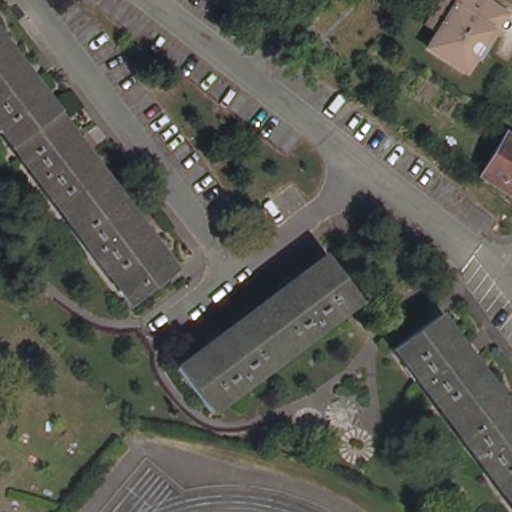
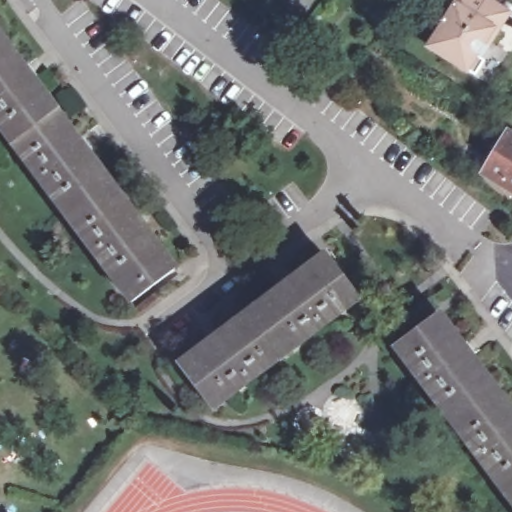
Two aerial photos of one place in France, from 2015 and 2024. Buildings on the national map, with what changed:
unchanged [(426,47),(437,30),(426,22),(431,15),(441,0),(487,0),(497,7),(508,14),(496,32),(479,58),(475,55),(464,71),(458,66),(426,47)]
unchanged [(133,303),(0,125),(0,35),(176,271),(133,303)]
unchanged [(512,132),(512,190),(486,171),(511,132),(512,132)]
unchanged [(363,297),(216,406),(183,362),(331,253),(363,297)]
unchanged [(395,345),(439,312),(512,408),(512,501),(395,345)]

